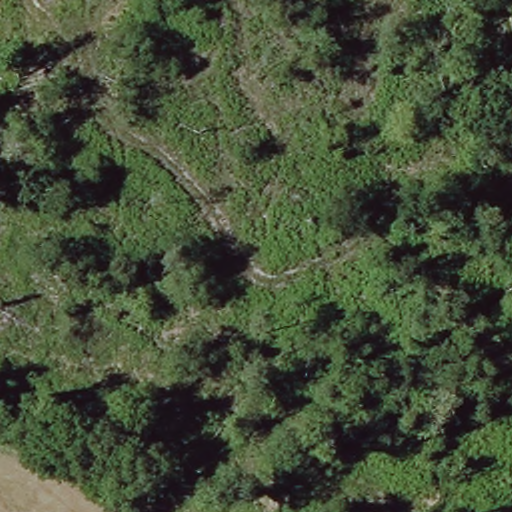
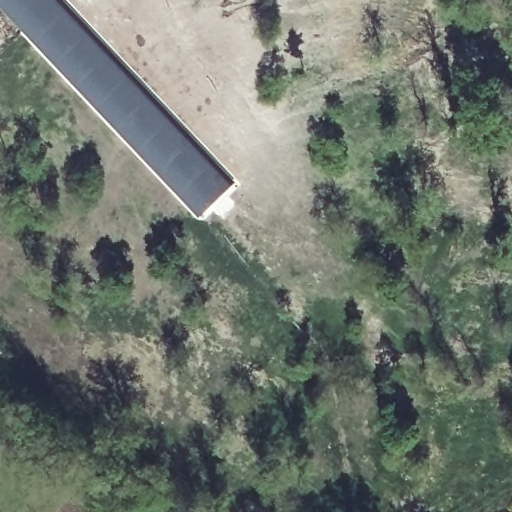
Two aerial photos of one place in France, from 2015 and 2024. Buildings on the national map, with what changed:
new [(0,6),(0,0),(66,0),(237,179),(202,216),(0,6)]

